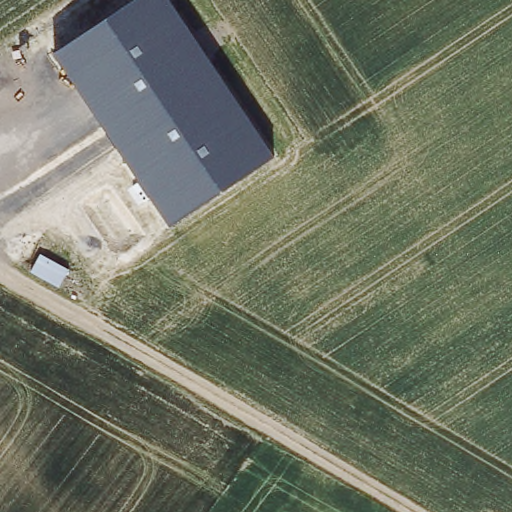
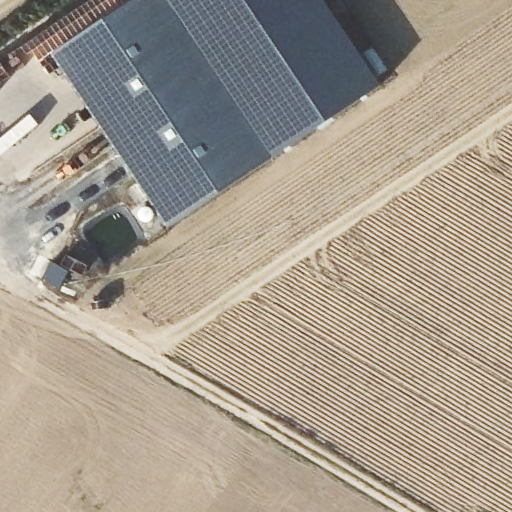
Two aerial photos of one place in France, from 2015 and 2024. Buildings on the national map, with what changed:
unchanged [(171,226),(54,53),(134,0),(168,0),(272,157),(171,226)]
new [(326,0),(382,83),(272,157),(168,0),(326,0)]

